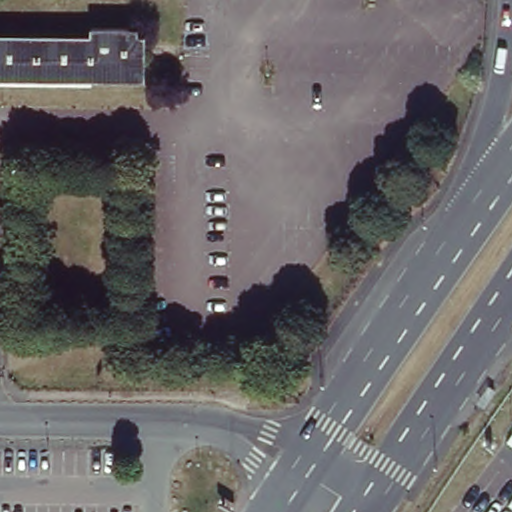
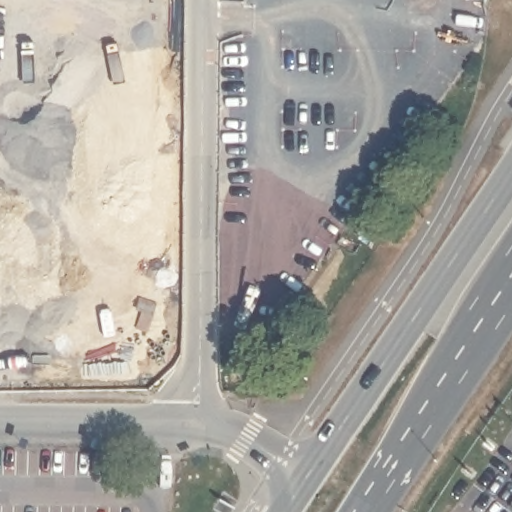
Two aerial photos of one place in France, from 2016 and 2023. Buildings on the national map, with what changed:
demolished [(99,43),(99,28),(138,29),(138,36),(145,36),(144,79),(0,78),(0,43),(99,43)]
unchanged [(140,323),(140,336),(53,335),(52,322),(140,323)]

